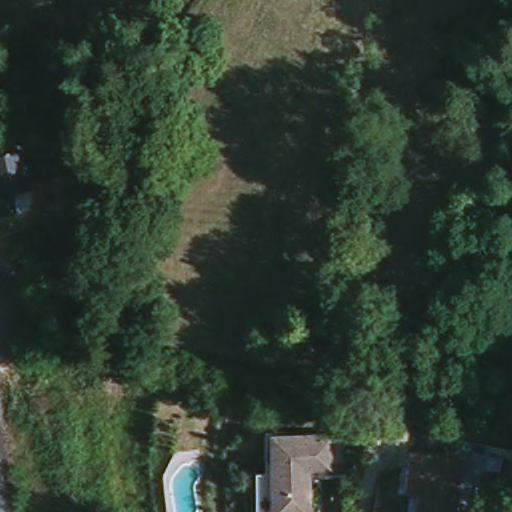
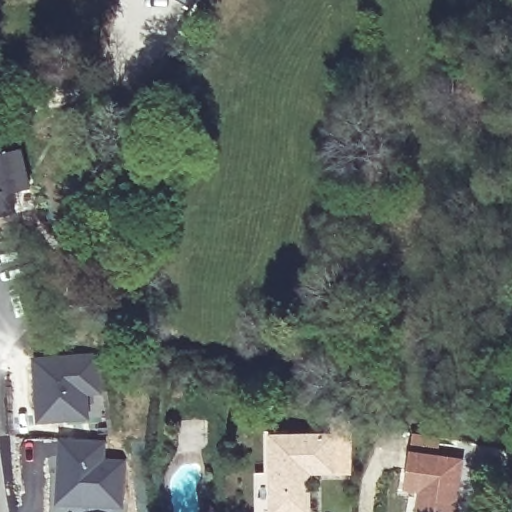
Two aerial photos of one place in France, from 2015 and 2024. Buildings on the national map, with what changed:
new [(30,190),(10,194),(15,214),(0,217),(0,154),(21,149),(30,190)]
new [(37,390),(34,359),(100,355),(102,386),(102,393),(86,394),(87,419),(60,421),(38,422),(37,390)]
unchanged [(262,512),(261,502),(260,475),(271,473),(269,431),(275,430),(275,435),(278,509),(278,512),(262,512)]
unchanged [(337,431),(339,469),(310,472),(310,478),(315,478),(315,512),(278,512),(278,509),(275,435),(337,431)]
new [(59,457),(60,440),(67,441),(104,442),(102,462),(122,463),(120,509),(89,507),(57,505),(57,484),(59,457)]
unchanged [(403,512),(412,454),(466,462),(458,512),(403,512)]

